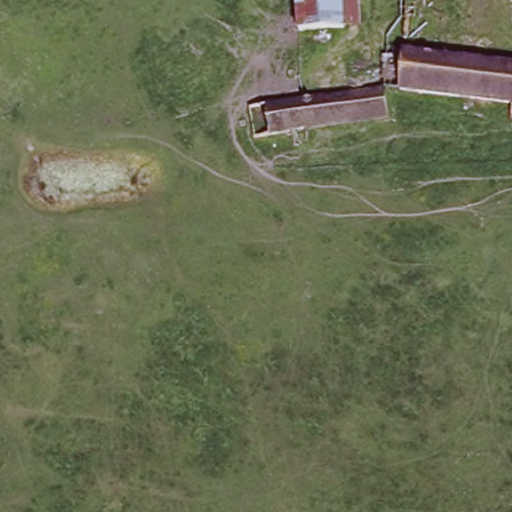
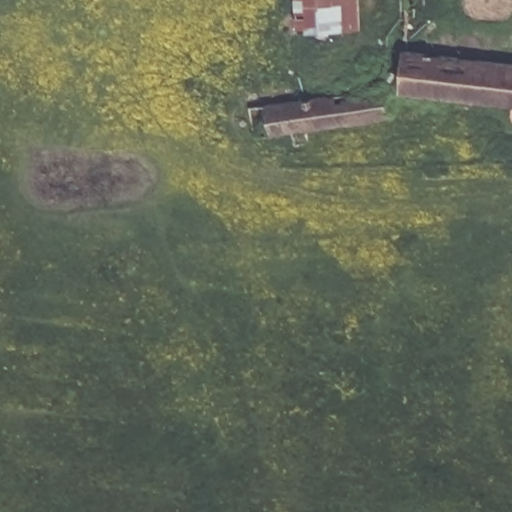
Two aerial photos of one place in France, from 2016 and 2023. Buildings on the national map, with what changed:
unchanged [(299,0),(352,0),(354,19),(301,21),(299,0)]
unchanged [(501,107),(454,103),(456,88),(408,84),(383,81),(388,42),(413,46),(512,60),(512,122),(499,121),(501,107)]
unchanged [(381,79),(388,114),(318,126),(319,138),(294,143),(291,131),(257,137),(253,102),(381,79)]

